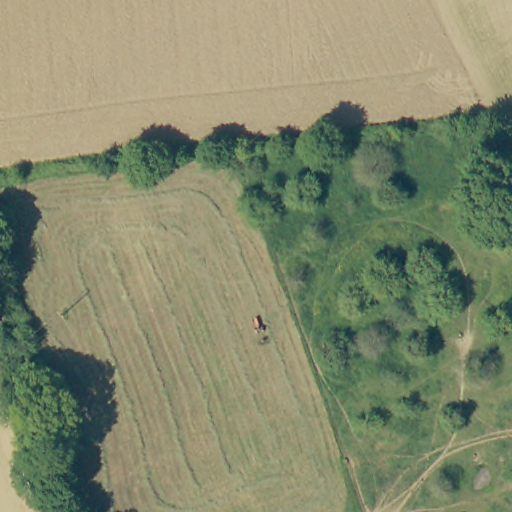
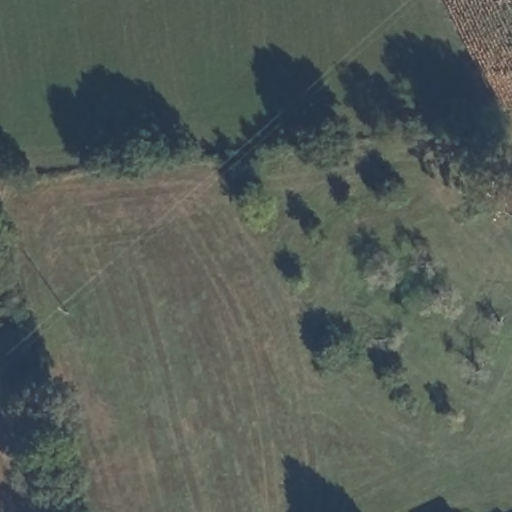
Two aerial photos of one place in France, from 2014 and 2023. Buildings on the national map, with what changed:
[]

